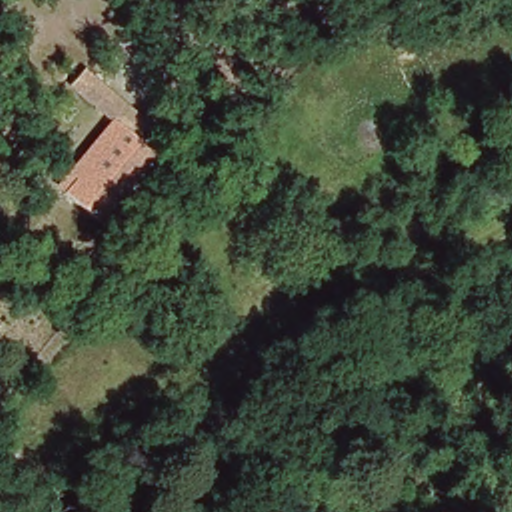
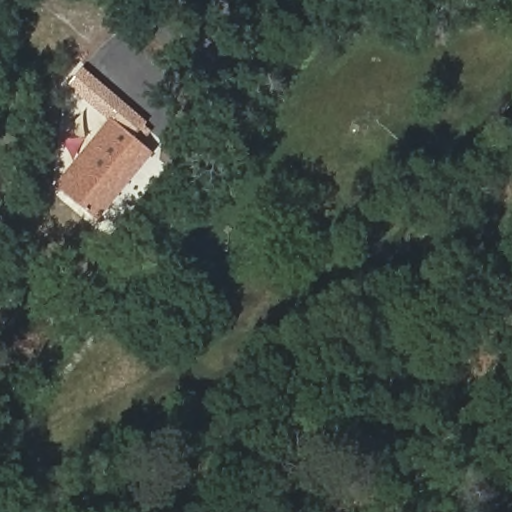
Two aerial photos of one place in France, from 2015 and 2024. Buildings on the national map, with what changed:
unchanged [(69,181),(112,130),(71,95),(85,78),(145,129),(133,144),(154,162),(97,229),(63,201),(57,195),(69,181)]

